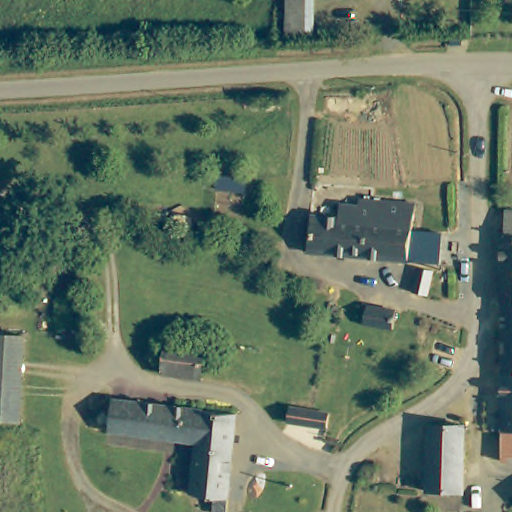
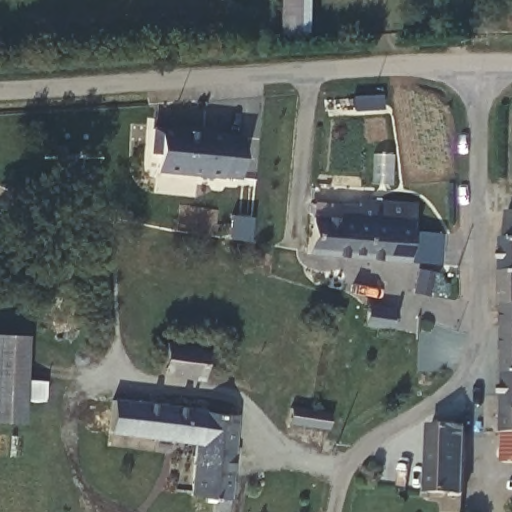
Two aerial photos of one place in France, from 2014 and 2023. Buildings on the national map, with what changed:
new [(286,34),(288,0),(317,0),(316,34),(286,34)]
new [(157,155),(149,154),(151,126),(171,128),(171,124),(211,127),(211,131),(227,133),(227,135),(246,135),(241,179),(155,171),(157,155)]
unchanged [(340,205),(370,207),(370,201),(413,205),(411,233),(443,233),(441,264),(338,255),(312,253),(315,216),(340,218),(340,205)]
unchanged [(512,210),(512,301),(506,301),(500,301),(497,301),(497,236),(503,236),(504,209),(512,210)]
unchanged [(418,272),(434,272),(434,278),(434,297),(425,296),(417,294),(417,278),(418,272)]
unchanged [(500,368),(500,301),(506,301),(512,301),(512,368),(500,368)]
unchanged [(371,306),(397,310),(395,330),(368,327),(371,306)]
unchanged [(0,335),(25,336),(19,421),(0,421),(0,335)]
unchanged [(164,378),(165,373),(167,345),(205,348),(203,382),(164,378)]
unchanged [(500,410),(500,368),(512,368),(512,512),(500,512),(500,428),(500,410)]
unchanged [(215,510),(217,497),(194,494),(200,439),(112,428),(115,397),(181,406),(237,414),(229,511),(215,510)]
unchanged [(325,416),(325,434),(287,432),(287,415),(315,416),(325,416)]
unchanged [(464,430),(464,438),(464,459),(463,488),(428,488),(429,467),(430,425),(464,426),(464,430)]
unchanged [(369,483),(361,477),(362,468),(367,464),(377,470),(371,480),(369,483)]

